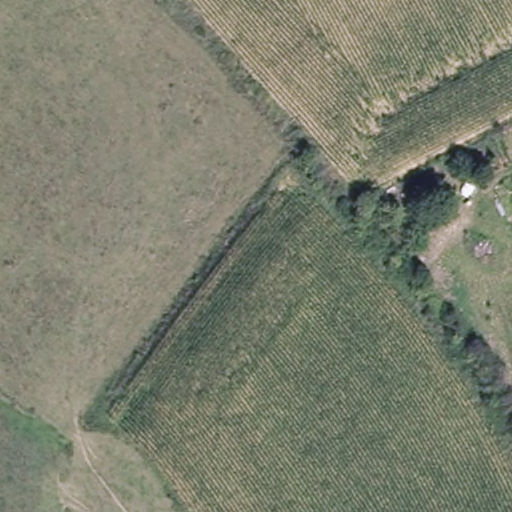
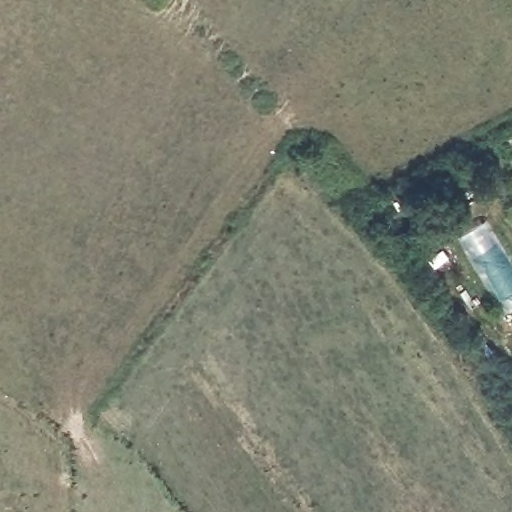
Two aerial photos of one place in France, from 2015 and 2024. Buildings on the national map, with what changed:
new [(512,266),(512,295),(500,302),(465,245),(470,241),(464,231),(472,226),(474,230),(481,226),(503,264),(508,261),(512,266)]

